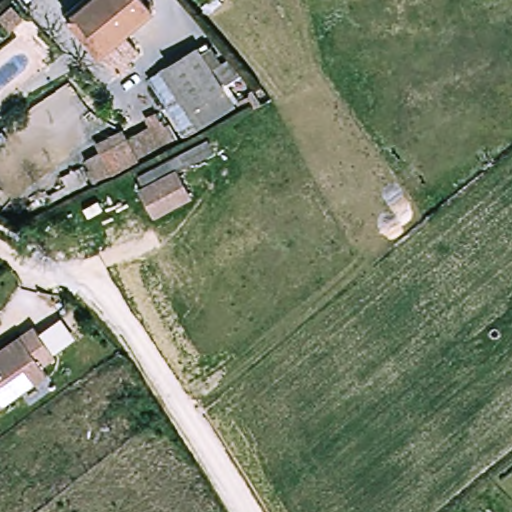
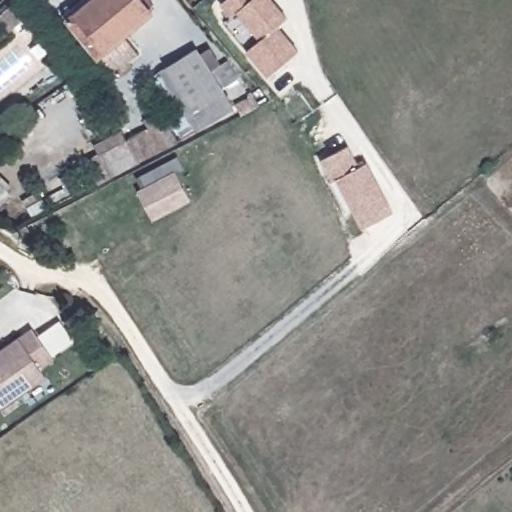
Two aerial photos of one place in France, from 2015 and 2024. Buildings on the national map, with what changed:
unchanged [(90,0),(142,0),(152,12),(97,57),(66,20),(90,0)]
new [(226,0),(272,0),(287,18),(278,26),(299,51),(270,76),(248,50),(261,39),(238,12),(232,17),(221,4),(226,0)]
unchanged [(10,13),(17,20),(5,30),(0,24),(0,21),(10,13)]
unchanged [(204,46),(241,105),(203,128),(165,70),(204,46)]
unchanged [(122,128),(129,140),(168,122),(146,82),(165,70),(203,128),(95,186),(80,149),(122,128)]
new [(321,157),(348,144),(358,164),(367,160),(393,211),(363,226),(350,200),(342,204),(330,179),(332,178),(321,157)]
new [(14,188),(0,203),(0,175),(14,188)]
unchanged [(175,177),(188,200),(150,219),(138,196),(175,177)]
unchanged [(16,225),(12,232),(0,225),(0,216),(16,225)]
unchanged [(48,351),(35,361),(42,369),(0,401),(0,341),(12,332),(25,321),(48,351)]

